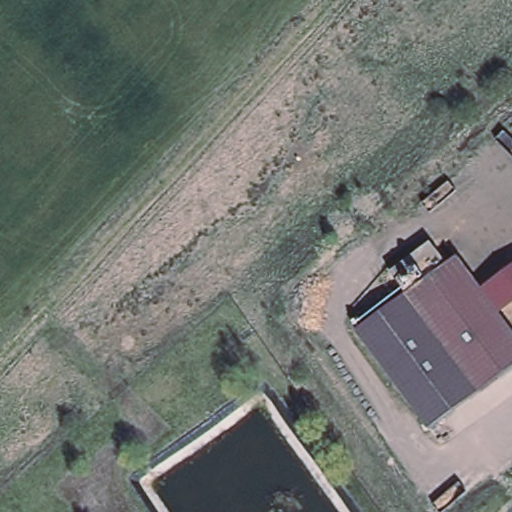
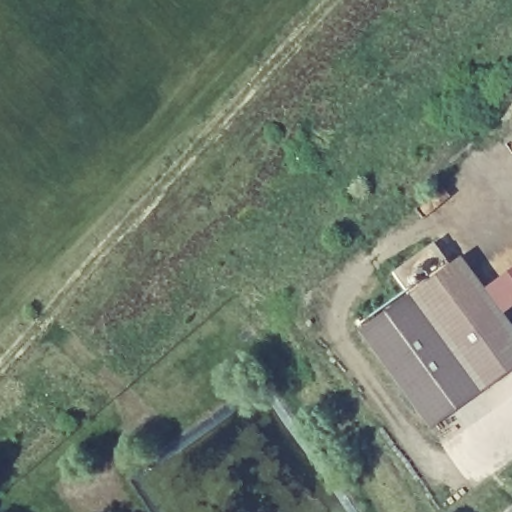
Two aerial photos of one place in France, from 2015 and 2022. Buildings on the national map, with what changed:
unchanged [(512,333),(512,368),(430,430),(357,333),(405,296),(390,274),(430,244),(445,265),(455,258),(482,293),(495,311),(512,333)]
unchanged [(512,271),(512,299),(495,311),(482,293),(512,271)]

